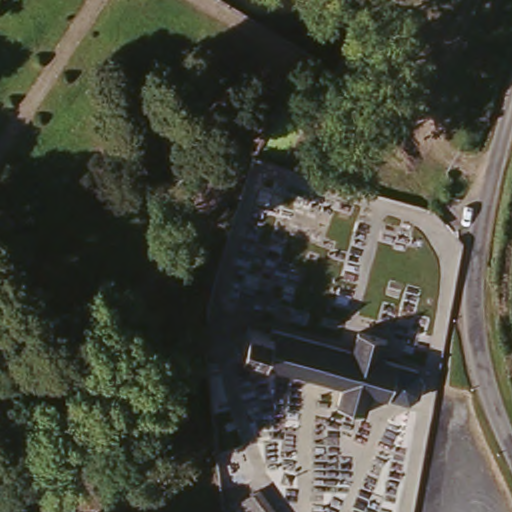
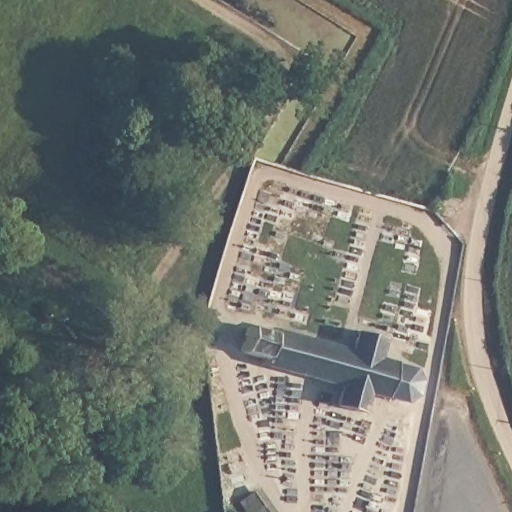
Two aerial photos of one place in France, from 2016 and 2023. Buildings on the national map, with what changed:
unchanged [(263,327),(264,324),(351,348),(358,327),(387,337),(381,357),(418,368),(429,379),(425,398),(407,404),(391,400),(390,405),(371,400),(366,417),(336,409),(341,390),(250,363),(251,358),(231,353),(242,320),(263,327)]
unchanged [(258,490),(274,512),(252,512),(242,500),(258,490)]

